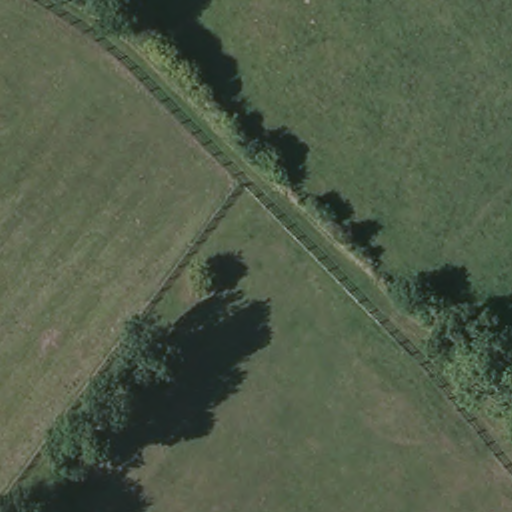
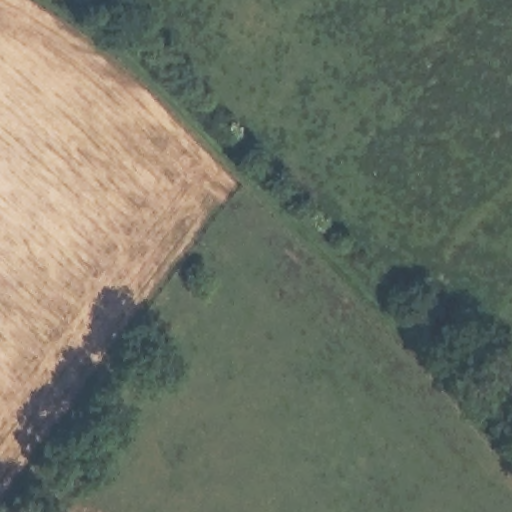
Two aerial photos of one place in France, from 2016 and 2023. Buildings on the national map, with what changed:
[]

